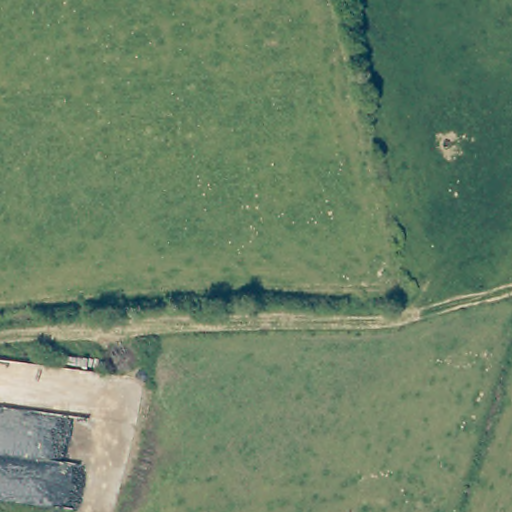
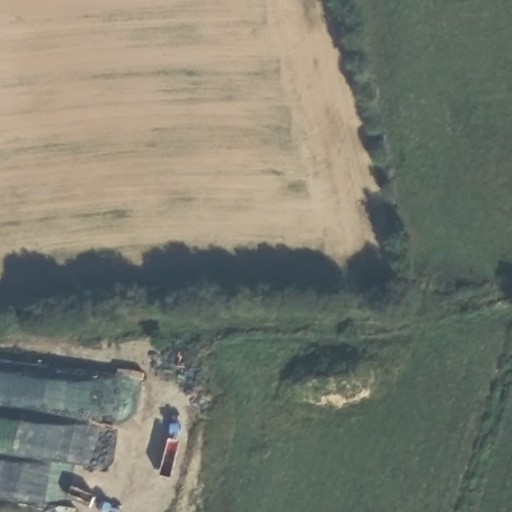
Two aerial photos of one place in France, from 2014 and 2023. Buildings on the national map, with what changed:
[]

